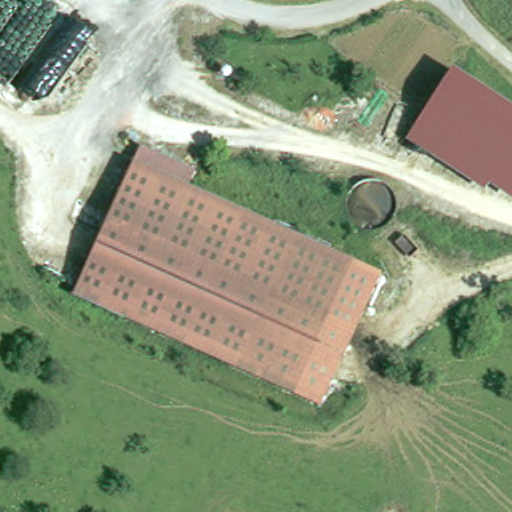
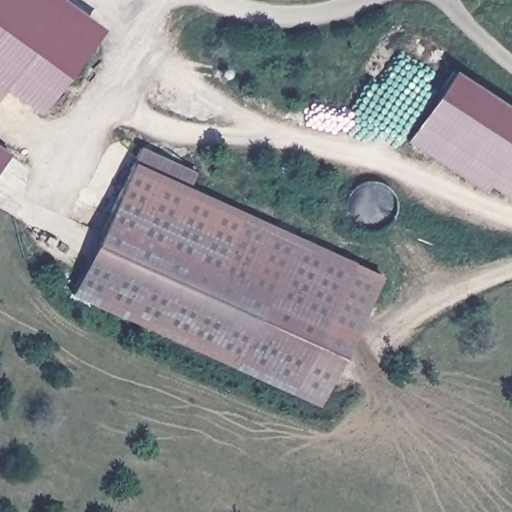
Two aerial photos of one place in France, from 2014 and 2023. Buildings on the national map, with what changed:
new [(39,112),(7,87),(0,97),(0,0),(64,0),(102,27),(39,112)]
unchanged [(512,111),(512,199),(488,187),(485,192),(405,141),(450,72),(512,111)]
unchanged [(199,169),(191,185),(356,259),(299,390),(77,286),(139,142),(199,169)]
new [(0,167),(0,144),(11,152),(0,167)]
unchanged [(379,276),(322,405),(297,394),(299,390),(347,278),(353,265),(379,276)]

